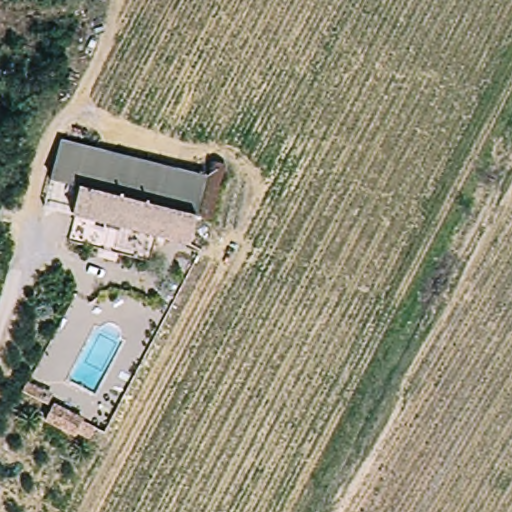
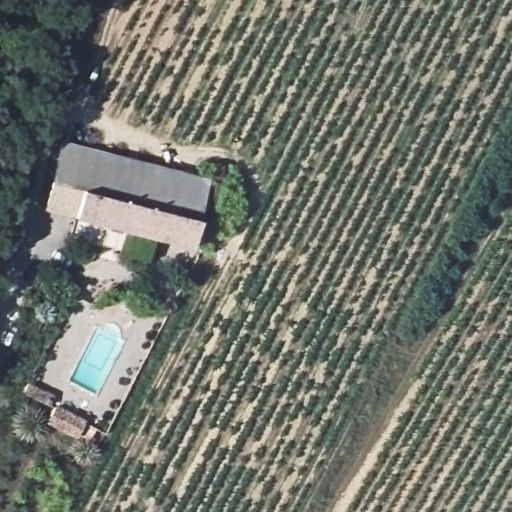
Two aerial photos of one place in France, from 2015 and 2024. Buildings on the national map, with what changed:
unchanged [(51,179),(63,140),(207,181),(196,220),(80,186),(51,179)]
unchanged [(196,220),(188,246),(71,214),(80,186),(196,220)]
unchanged [(39,407),(24,397),(29,390),(44,398),(39,407)]
unchanged [(73,445),(44,429),(53,415),(81,431),(73,445)]

